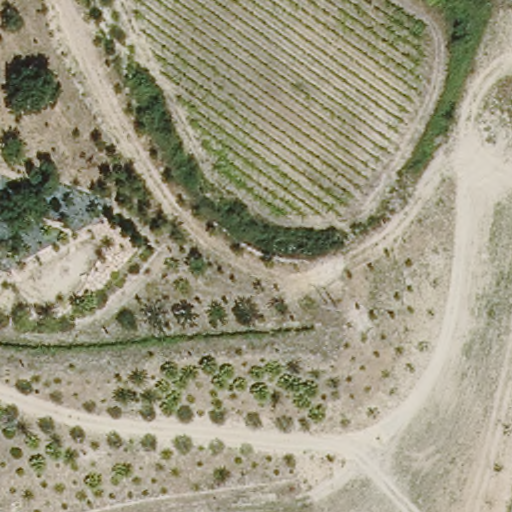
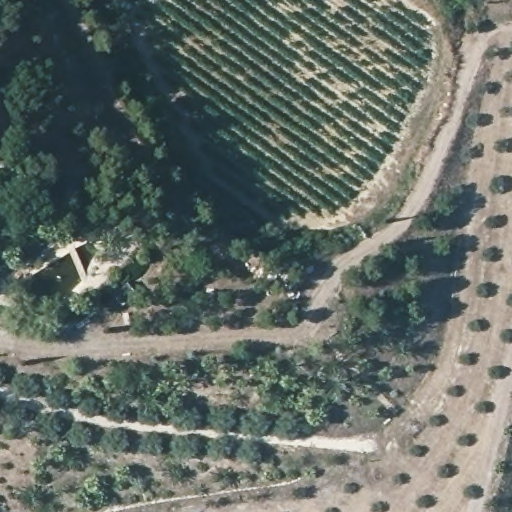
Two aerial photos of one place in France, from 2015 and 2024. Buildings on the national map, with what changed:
unchanged [(0,194),(0,184),(8,178),(18,191),(3,199),(0,194)]

